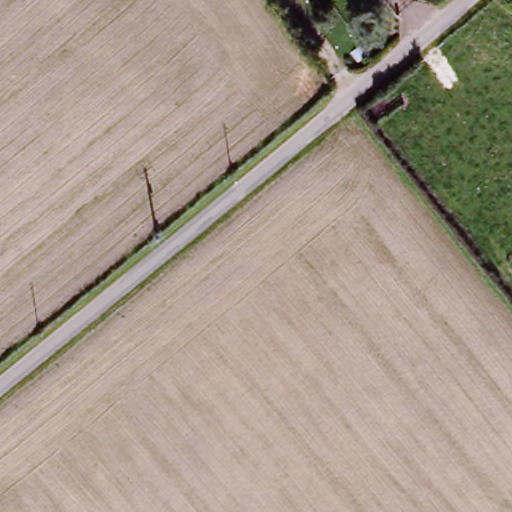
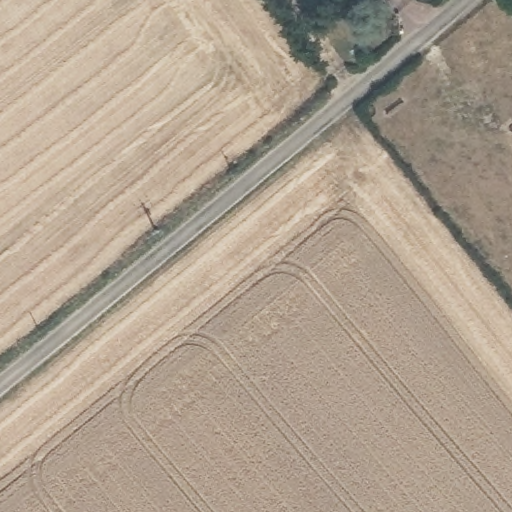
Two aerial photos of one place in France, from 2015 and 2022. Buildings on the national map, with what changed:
unchanged [(506,0),(512,0),(512,7),(506,0)]

